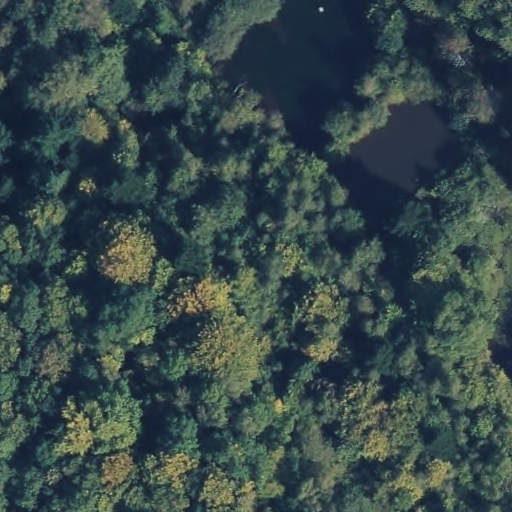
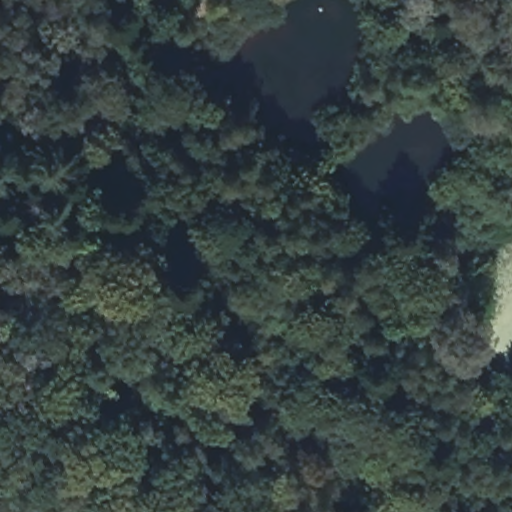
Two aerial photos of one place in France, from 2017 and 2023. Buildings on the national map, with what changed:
unchanged [(493,51),(512,78),(512,90),(490,100),(467,61),(493,51)]
unchanged [(512,111),(512,113),(510,112),(512,111)]

